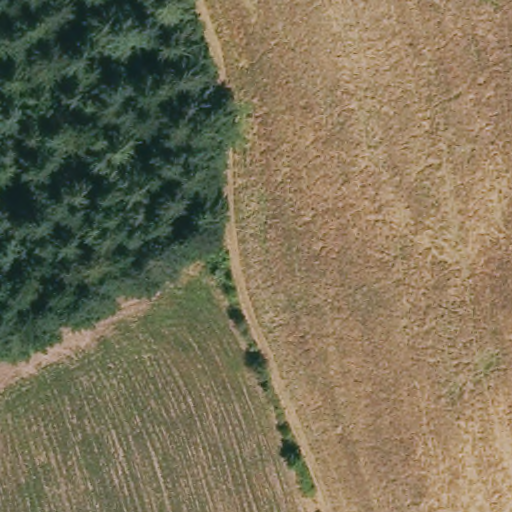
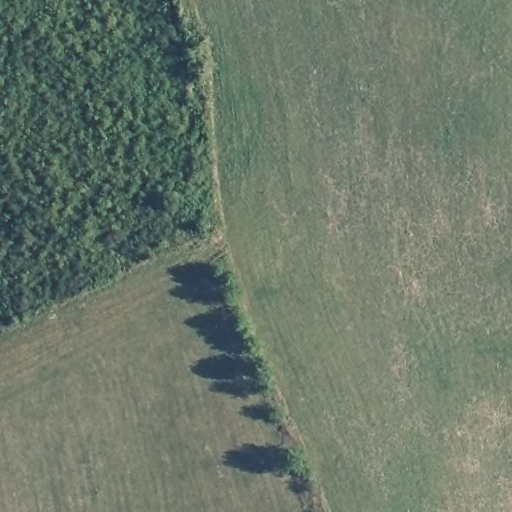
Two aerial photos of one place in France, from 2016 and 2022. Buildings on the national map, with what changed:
[]

